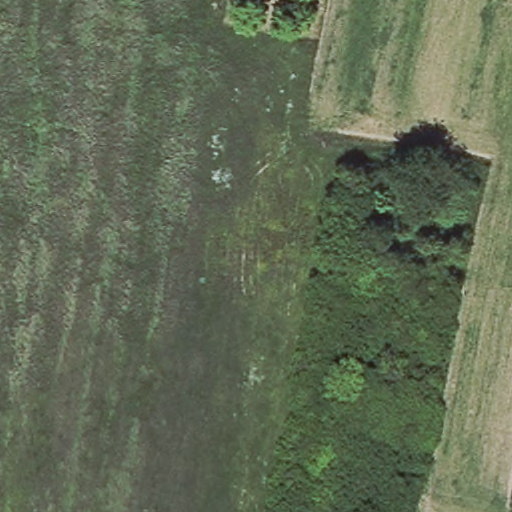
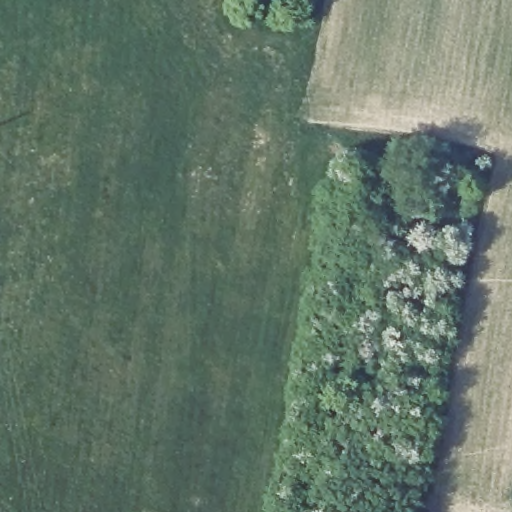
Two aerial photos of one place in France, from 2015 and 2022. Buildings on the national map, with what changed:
[]

